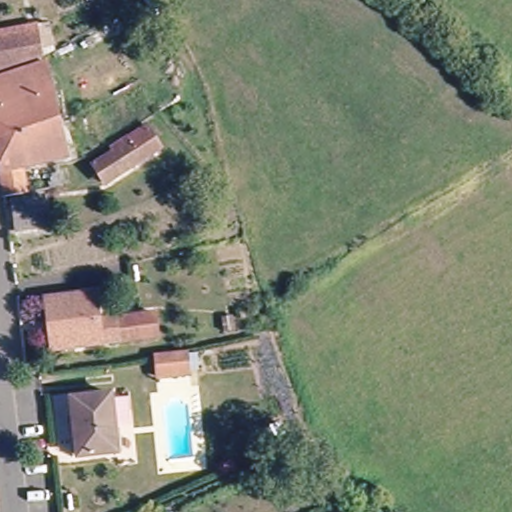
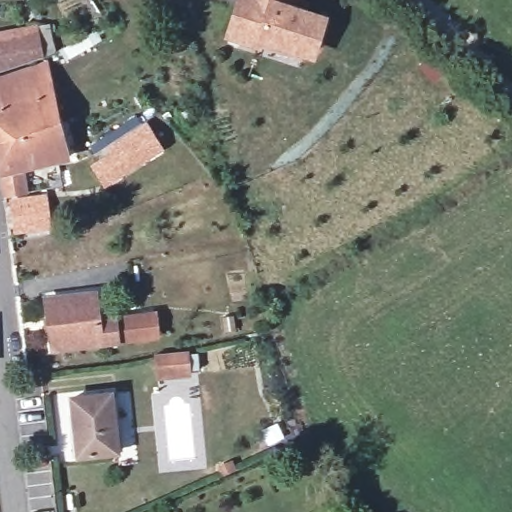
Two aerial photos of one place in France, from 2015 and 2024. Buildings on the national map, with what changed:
new [(261,50),(225,37),(236,0),(298,0),(295,6),(327,15),(313,60),(263,46),(261,50)]
unchanged [(0,64),(0,28),(32,14),(45,46),(0,64)]
unchanged [(57,125),(0,136),(0,75),(47,55),(57,125)]
unchanged [(91,166),(142,123),(159,147),(107,186),(91,166)]
unchanged [(0,136),(57,125),(61,155),(21,163),(26,191),(5,195),(0,170),(0,136)]
unchanged [(43,195),(45,223),(13,229),(9,200),(43,195)]
unchanged [(53,352),(45,303),(93,297),(96,322),(155,315),(161,340),(53,352)]
unchanged [(215,303),(232,298),(234,312),(218,315),(215,303)]
unchanged [(157,355),(189,350),(192,373),(159,377),(157,355)]
unchanged [(66,397),(106,393),(113,450),(74,455),(66,397)]
unchanged [(227,438),(233,450),(220,455),(215,444),(227,438)]

